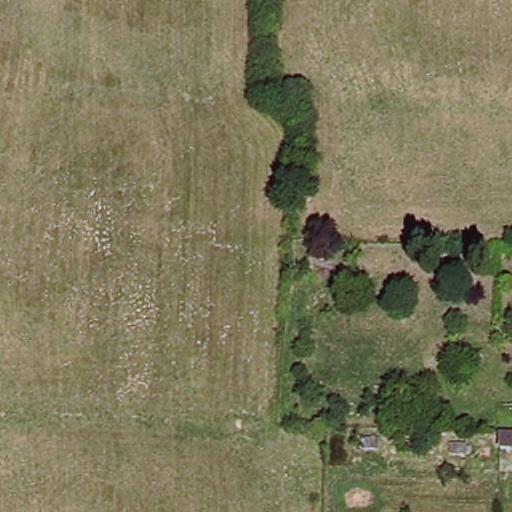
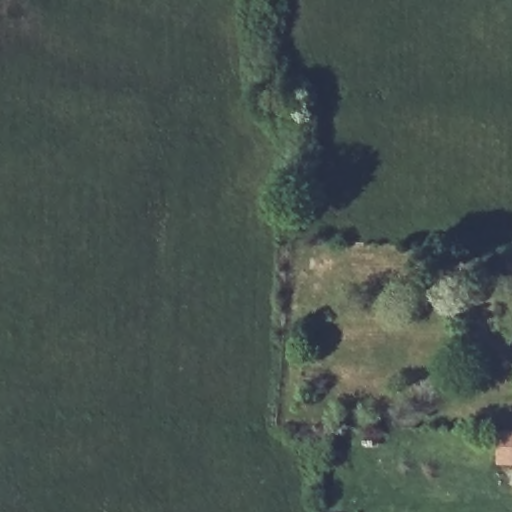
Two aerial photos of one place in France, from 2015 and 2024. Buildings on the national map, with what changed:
unchanged [(498,446),(498,428),(512,428),(512,446),(498,446)]

